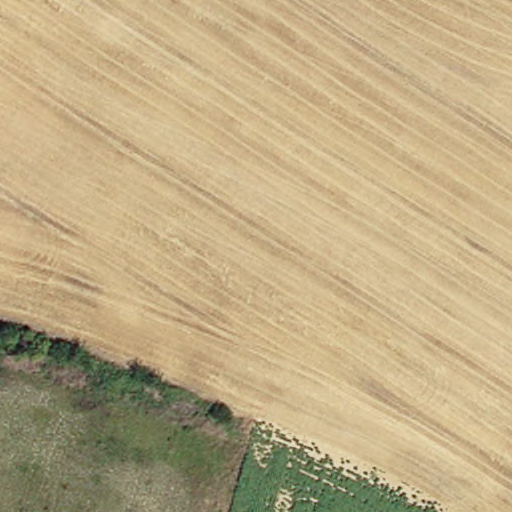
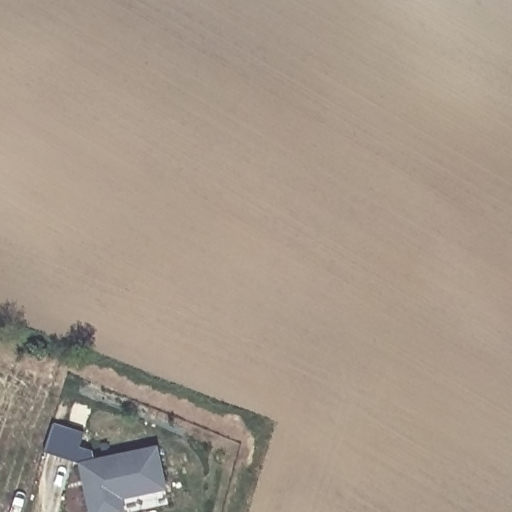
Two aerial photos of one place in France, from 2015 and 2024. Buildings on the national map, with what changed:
new [(157,445),(166,491),(122,501),(125,512),(88,512),(78,463),(157,445)]

